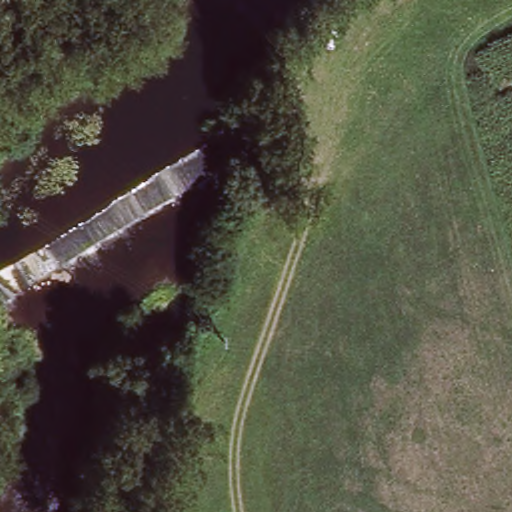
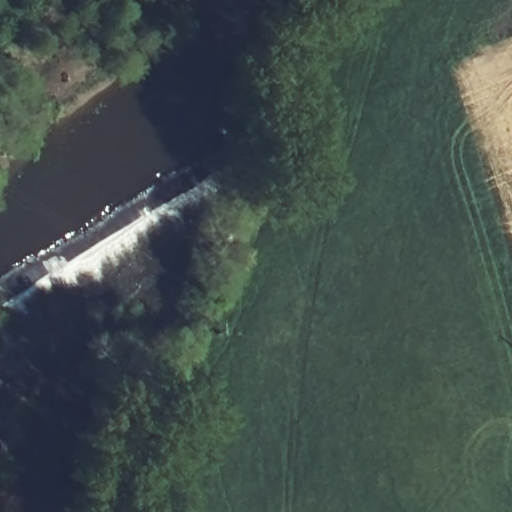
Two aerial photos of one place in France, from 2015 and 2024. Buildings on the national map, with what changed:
[]

